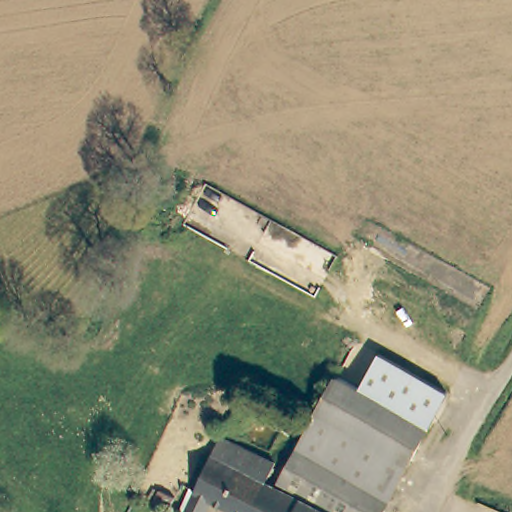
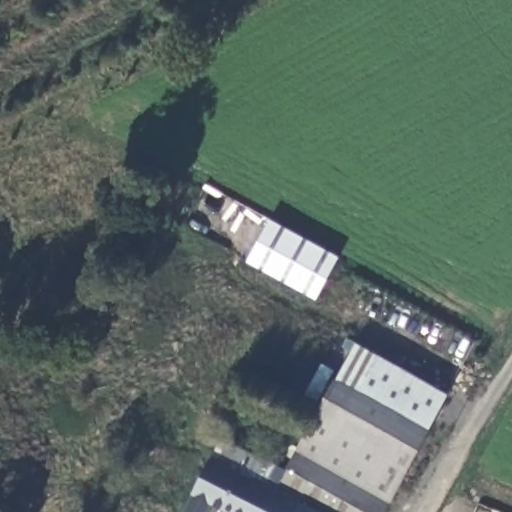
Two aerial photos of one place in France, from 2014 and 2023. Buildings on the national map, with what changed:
new [(270,218),(339,256),(316,300),(247,261),(270,218)]
unchanged [(315,415),(348,353),(352,344),(444,393),(409,464),(315,415)]
unchanged [(275,490),(315,415),(409,464),(384,512),(320,512),(292,498),(275,490)]
unchanged [(224,464),(229,467),(239,448),(274,466),(265,485),(275,490),(292,498),(320,512),(235,512),(212,501),(206,512),(185,512),(212,458),(224,464)]

